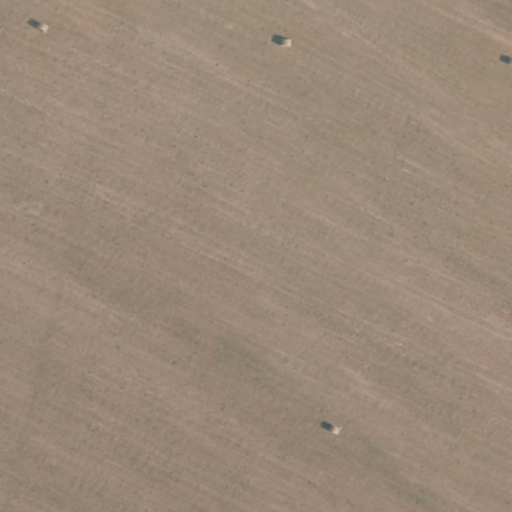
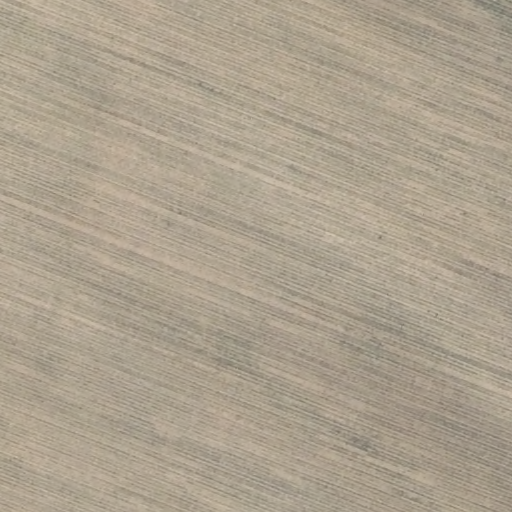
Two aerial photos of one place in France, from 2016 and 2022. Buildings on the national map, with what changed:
[]

